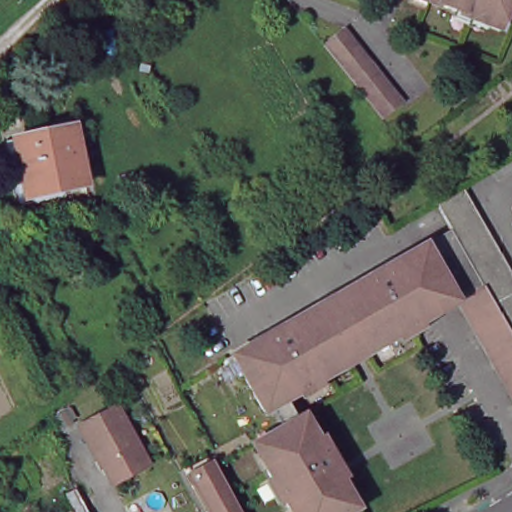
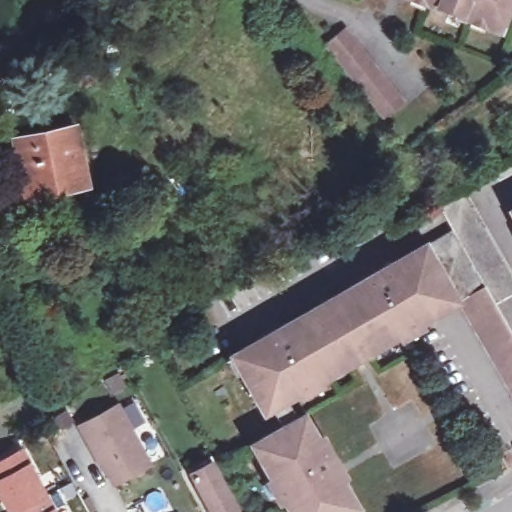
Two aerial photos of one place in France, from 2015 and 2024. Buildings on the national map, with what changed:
unchanged [(426,0),(436,0),(435,3),(426,0)]
unchanged [(512,0),(512,26),(510,30),(477,18),(478,15),(436,0),(512,0)]
unchanged [(348,28),(412,100),(391,119),(327,46),(348,28)]
unchanged [(33,204),(22,146),(84,135),(95,192),(33,204)]
unchanged [(512,261),(512,315),(461,227),(447,203),(470,189),(512,261)]
unchanged [(461,227),(512,315),(512,381),(467,300),(435,243),(461,227)]
unchanged [(446,312),(438,316),(435,319),(407,334),(393,342),(374,353),(345,301),(365,289),(407,265),(405,259),(413,255),(435,243),(467,300),(446,312)]
unchanged [(334,368),(337,374),(273,410),(240,353),(327,304),(356,356),(334,368)]
unchanged [(147,461),(112,480),(99,455),(97,456),(78,423),(116,402),(147,461)]
unchanged [(313,413),(367,507),(358,512),(311,512),(305,502),(297,507),(276,470),(285,465),(270,439),(313,413)]
new [(16,512),(7,512),(0,499),(0,460),(23,447),(48,494),(16,512)]
unchanged [(216,464),(242,512),(219,512),(198,474),(216,464)]
demolished [(68,493),(76,489),(88,512),(78,512),(68,493)]
new [(16,512),(48,494),(55,507),(58,512),(17,512),(16,512)]

